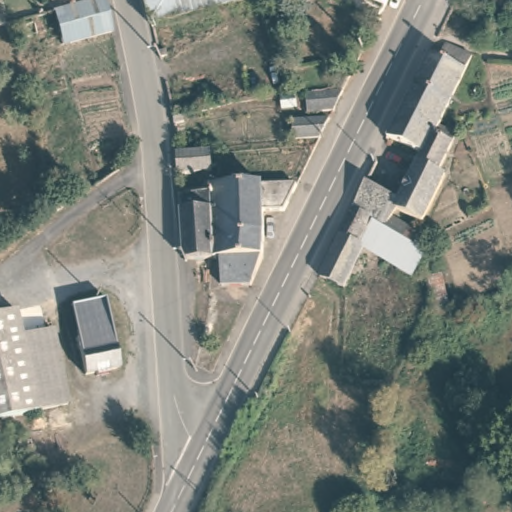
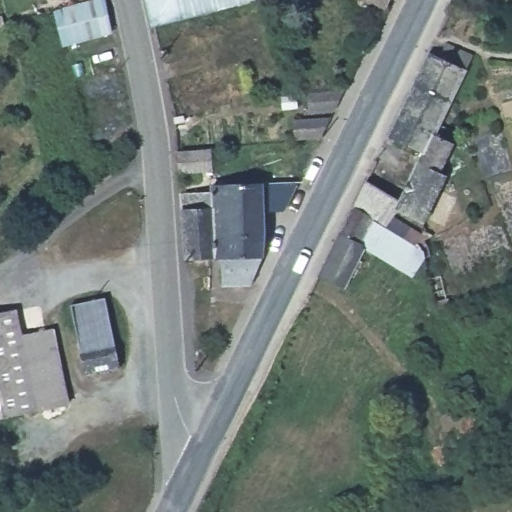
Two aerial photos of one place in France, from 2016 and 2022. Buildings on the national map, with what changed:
unchanged [(69,36),(61,4),(75,0),(106,0),(111,27),(69,36)]
unchanged [(146,0),(253,0),(185,16),(151,24),(146,0)]
unchanged [(388,0),(385,6),(373,0),(388,0)]
unchanged [(438,124),(456,131),(438,170),(446,174),(424,222),(397,209),(394,216),(423,230),(425,227),(430,230),(426,238),(417,243),(373,218),(353,205),(366,179),(399,200),(422,153),(387,135),(429,51),(438,56),(445,42),(471,54),(438,124)]
unchanged [(329,103),(301,105),(300,89),(338,84),(329,103)]
unchanged [(316,131),(289,133),(288,114),(325,111),(316,131)]
unchanged [(184,123),(174,124),(174,116),(184,115),(184,123)]
unchanged [(211,149),(213,170),(178,172),(176,151),(211,149)]
unchanged [(285,209),(265,209),(264,234),(262,233),(229,235),(228,213),(211,213),(213,258),(211,258),(185,259),(180,193),(211,191),(211,185),(297,183),(285,209)]
unchanged [(51,197),(63,193),(66,204),(54,212),(51,197)]
unchanged [(344,286),(319,274),(337,239),(353,205),(373,218),(360,241),(363,250),(344,286)]
unchanged [(211,213),(228,213),(229,235),(262,233),(264,234),(264,255),(250,284),(222,284),(221,258),(213,258),(211,213)]
unchanged [(412,277),(363,250),(360,241),(373,218),(417,243),(423,249),(424,256),(412,277)]
unchanged [(441,272),(449,304),(434,308),(427,275),(441,272)]
unchanged [(71,335),(64,304),(101,296),(108,329),(71,335)]
unchanged [(15,309),(20,334),(36,409),(0,417),(0,312),(15,309)]
unchanged [(44,329),(60,404),(36,409),(20,334),(44,329)]
unchanged [(116,366),(104,369),(105,372),(90,374),(89,371),(79,374),(71,335),(108,329),(116,366)]

